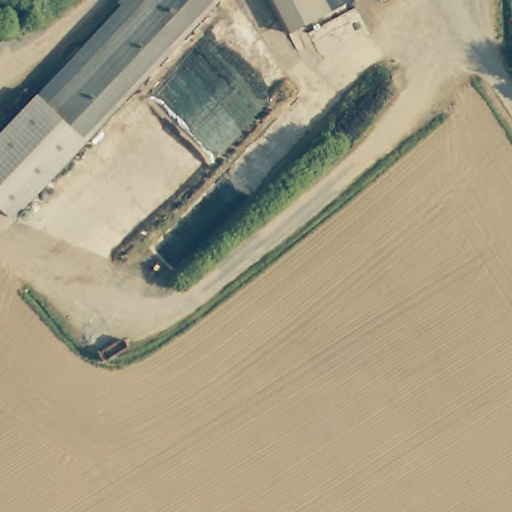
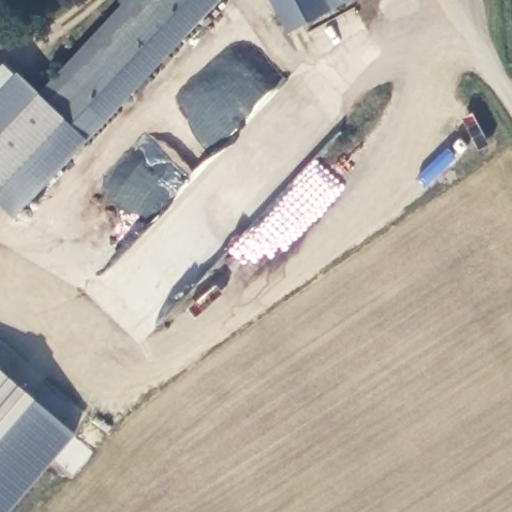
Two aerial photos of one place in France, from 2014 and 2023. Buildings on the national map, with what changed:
unchanged [(84,137),(48,104),(146,0),(213,0),(84,137)]
unchanged [(293,30),(277,0),(347,0),(293,30)]
unchanged [(76,153),(15,217),(0,203),(0,136),(30,105),(36,99),(84,144),(76,153)]
new [(10,512),(0,512),(0,368),(76,435),(10,512)]

